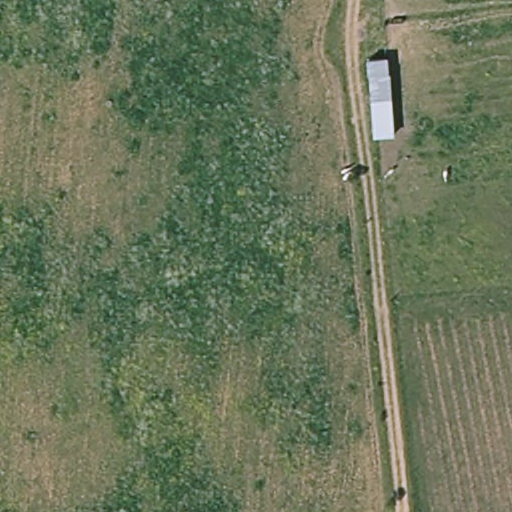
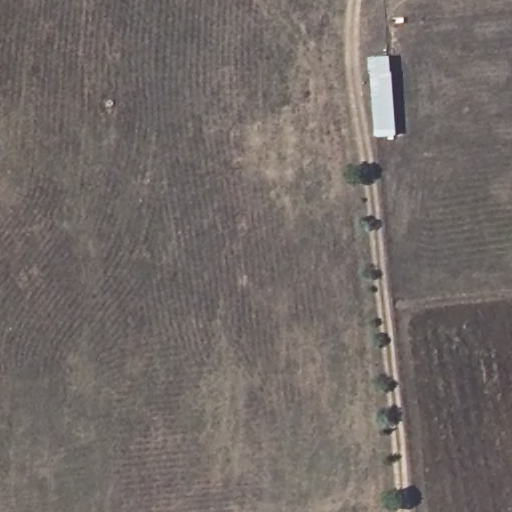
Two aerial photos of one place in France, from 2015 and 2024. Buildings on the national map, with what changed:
unchanged [(394,136),(374,138),(369,59),(389,57),(394,136)]

